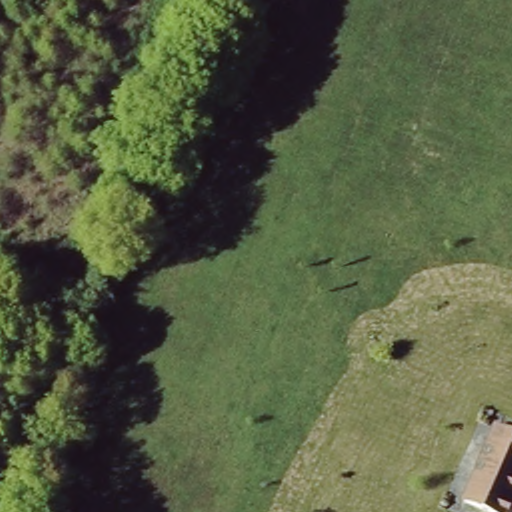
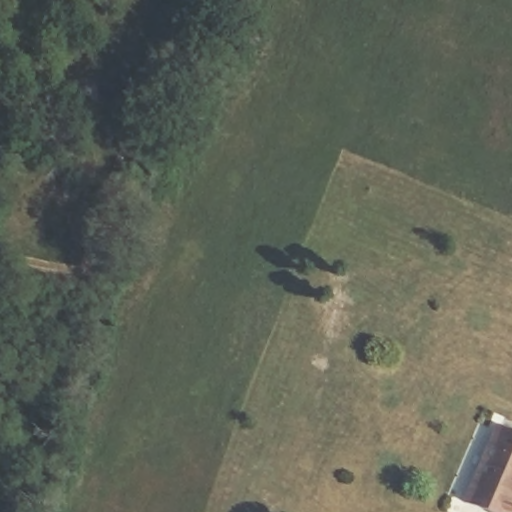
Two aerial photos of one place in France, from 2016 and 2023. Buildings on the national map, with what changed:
unchanged [(512,424),(512,512),(484,512),(458,499),(497,417),(512,424)]

